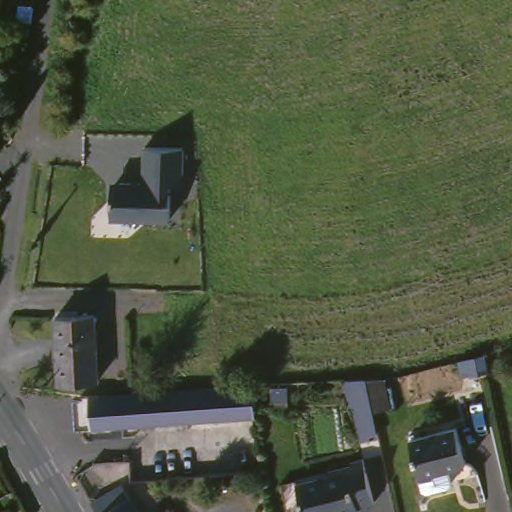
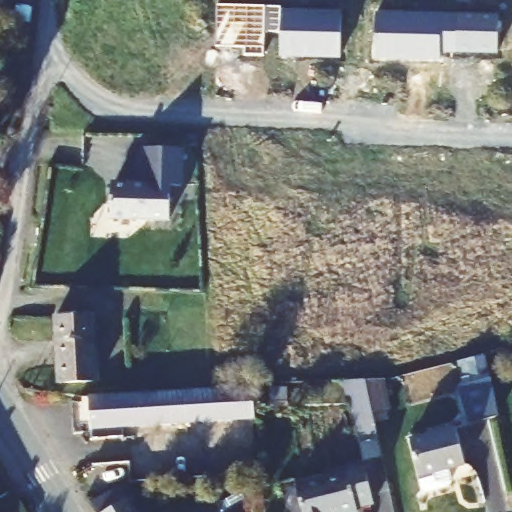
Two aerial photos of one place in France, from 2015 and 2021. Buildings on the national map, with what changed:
unchanged [(0,0),(26,0),(22,37),(8,36),(10,15),(5,15),(3,34),(0,33),(0,0)]
new [(216,6),(280,8),(280,13),(279,33),(263,33),(262,56),(242,55),(242,47),(215,47),(216,6)]
new [(279,33),(280,13),(335,14),(334,57),(278,56),(279,33)]
new [(375,15),(440,17),(440,47),(439,54),(374,54),(375,15)]
new [(440,17),(497,18),(497,48),(440,47),(440,17)]
unchanged [(192,147),(190,179),(178,180),(173,220),(115,214),(117,172),(145,173),(147,145),(192,147)]
unchanged [(97,383),(58,384),(54,317),(93,315),(97,383)]
unchanged [(377,434),(360,438),(347,382),(365,381),(377,434)]
unchanged [(250,388),(252,420),(122,427),(123,436),(91,438),(89,397),(250,388)]
unchanged [(468,470),(423,482),(415,446),(459,434),(468,470)]
unchanged [(364,468),(373,507),(357,511),(357,512),(302,512),(296,488),(328,481),(327,476),(364,468)]
unchanged [(135,512),(92,512),(87,504),(121,487),(135,512)]

